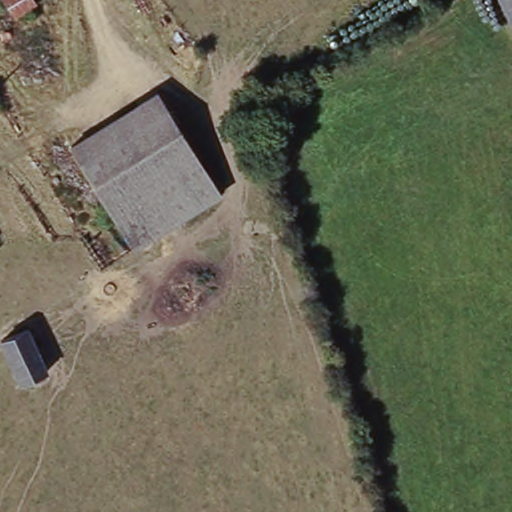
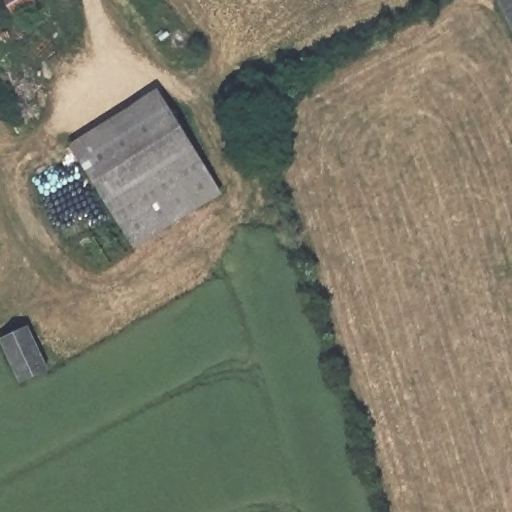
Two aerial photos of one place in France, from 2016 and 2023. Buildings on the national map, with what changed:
unchanged [(16,20),(2,0),(37,0),(40,5),(16,20)]
unchanged [(512,0),(512,22),(503,0),(512,0)]
unchanged [(152,96),(164,110),(85,167),(71,145),(152,96)]
unchanged [(225,190),(141,252),(112,211),(94,185),(83,169),(85,167),(164,110),(165,110),(179,129),(195,150),(225,190)]
unchanged [(22,390),(1,346),(31,330),(53,374),(22,390)]

